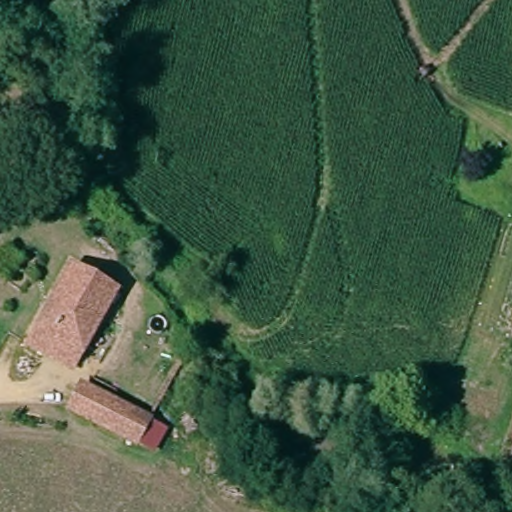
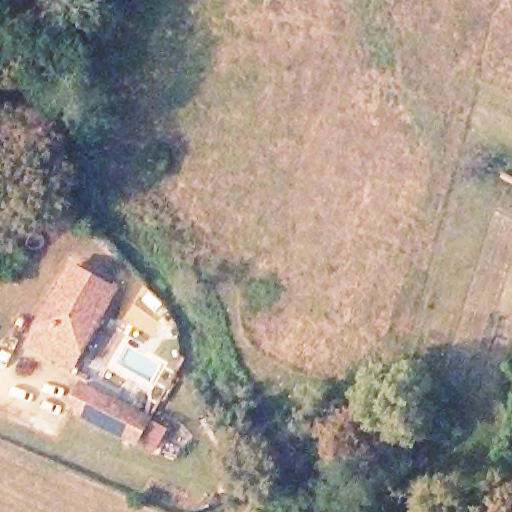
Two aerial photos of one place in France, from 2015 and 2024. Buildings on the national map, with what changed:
unchanged [(117,290),(77,369),(32,347),(73,267),(117,290)]
unchanged [(141,445),(72,411),(84,386),(153,420),(141,445)]

